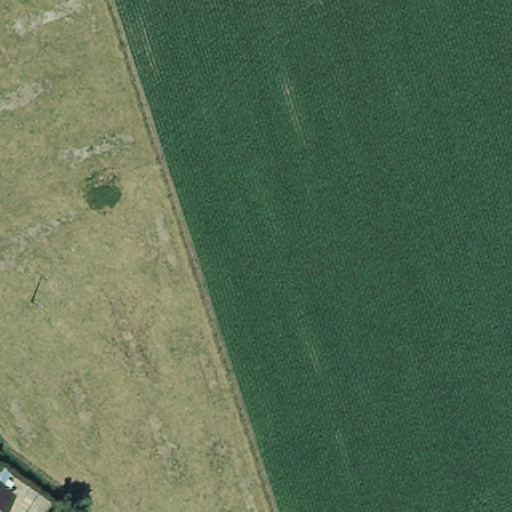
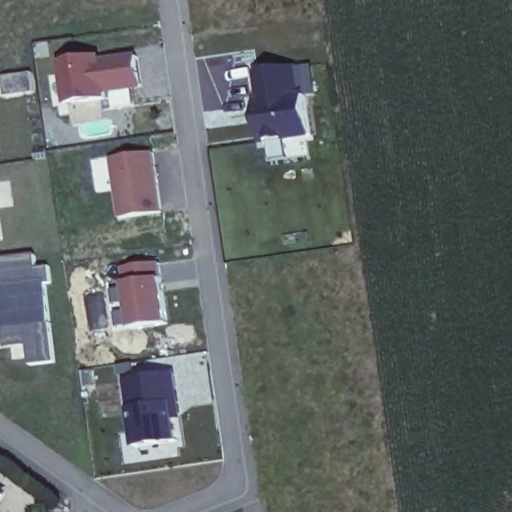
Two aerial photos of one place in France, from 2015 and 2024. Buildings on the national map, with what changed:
new [(66,101),(60,59),(82,56),(82,59),(97,57),(97,54),(98,54),(99,59),(135,53),(140,83),(103,89),(104,96),(66,101)]
new [(265,146),(255,72),(299,66),(302,94),(308,94),(314,140),(265,146)]
new [(163,214),(121,219),(113,158),(155,153),(163,214)]
new [(17,205),(2,207),(7,242),(0,242),(0,184),(15,183),(17,205)]
new [(29,359),(13,361),(10,347),(5,348),(4,337),(0,337),(0,285),(3,285),(2,260),(34,256),(36,269),(49,267),(50,279),(56,325),(43,327),(53,362),(30,366),(29,359)]
new [(134,329),(127,284),(124,270),(162,265),(164,279),(170,325),(134,329)]
new [(182,374),(187,420),(182,420),(184,441),(140,447),(130,381),(182,374)]

